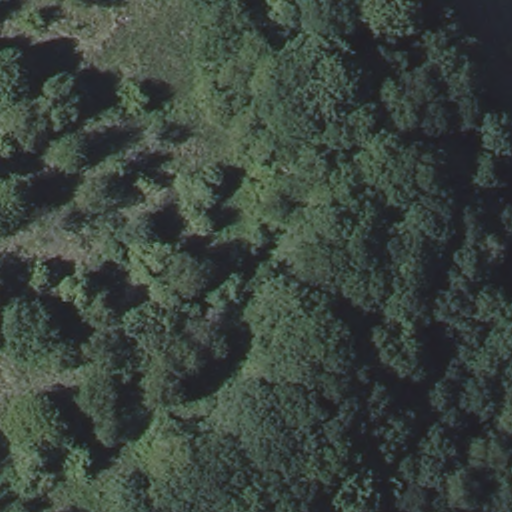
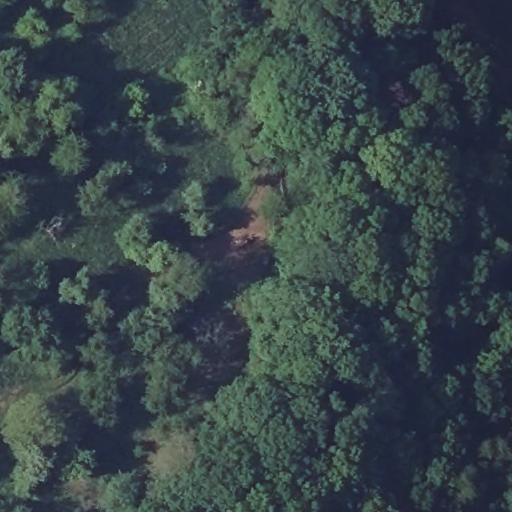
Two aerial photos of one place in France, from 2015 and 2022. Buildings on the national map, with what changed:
[]

